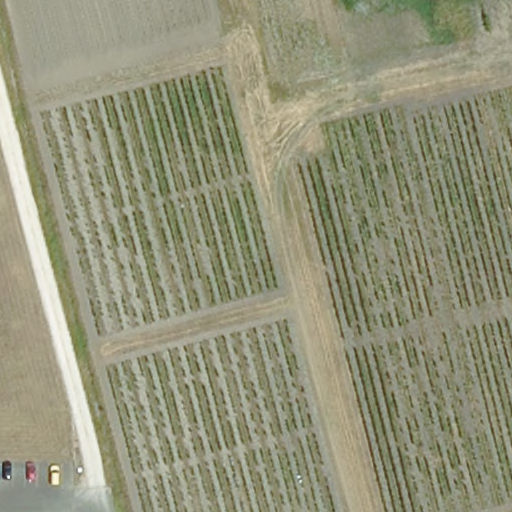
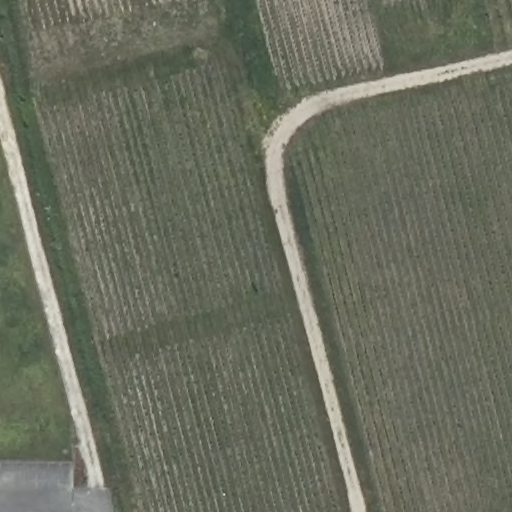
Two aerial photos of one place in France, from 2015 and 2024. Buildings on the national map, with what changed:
[]

